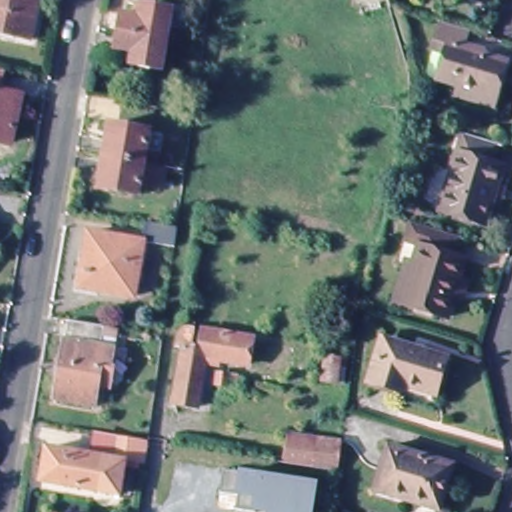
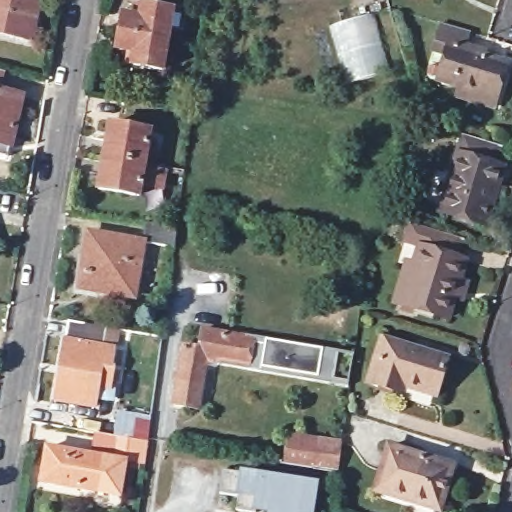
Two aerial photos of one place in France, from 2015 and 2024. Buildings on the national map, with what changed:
unchanged [(30,39),(0,33),(0,0),(22,0),(38,3),(30,39)]
unchanged [(144,24),(147,10),(177,16),(166,77),(137,71),(139,58),(122,55),(128,21),(144,24)]
new [(372,13),(388,70),(347,83),(328,25),(372,13)]
unchanged [(478,39),(472,59),(507,70),(497,105),(457,93),(431,84),(447,29),(478,39)]
unchanged [(497,105),(507,70),(512,72),(512,92),(503,119),(453,104),(457,93),(497,105)]
unchanged [(16,150),(0,147),(0,79),(7,80),(3,100),(20,104),(26,105),(21,128),(16,150)]
unchanged [(143,132),(137,164),(162,168),(159,189),(134,185),(132,196),(94,189),(105,125),(143,132)]
unchanged [(502,146),(497,166),(505,169),(488,226),(443,212),(467,136),(502,146)]
unchanged [(150,223),(181,228),(179,249),(146,244),(150,223)]
unchanged [(458,300),(450,297),(443,318),(398,305),(390,302),(400,268),(409,271),(416,248),(403,244),(408,225),(458,239),(453,258),(461,261),(455,281),(463,284),(458,300)]
unchanged [(87,274),(91,275),(94,256),(91,255),(94,235),(146,244),(139,296),(99,291),(85,289),(87,274)]
unchanged [(104,326),(103,331),(114,333),(108,368),(111,368),(107,387),(97,385),(92,404),(55,398),(68,321),(104,326)]
unchanged [(203,327),(201,344),(209,345),(211,327),(232,331),(232,333),(261,339),(257,362),(214,355),(207,403),(184,398),(193,344),(186,342),(188,324),(203,327)]
new [(267,340),(322,349),(353,354),(347,387),(255,370),(257,362),(261,339),(267,340)]
unchanged [(449,359),(437,396),(403,386),(401,394),(372,385),(385,340),(449,359)]
unchanged [(284,465),(288,435),(342,443),(337,473),(284,465)]
unchanged [(139,465),(120,462),(114,494),(36,481),(42,449),(114,460),(117,440),(142,444),(139,465)]
unchanged [(452,467),(439,510),(375,490),(388,447),(452,467)]
unchanged [(275,478),(315,483),(311,512),(268,512),(268,511),(260,510),(259,512),(242,512),(243,498),(222,495),(226,472),(275,478)]

